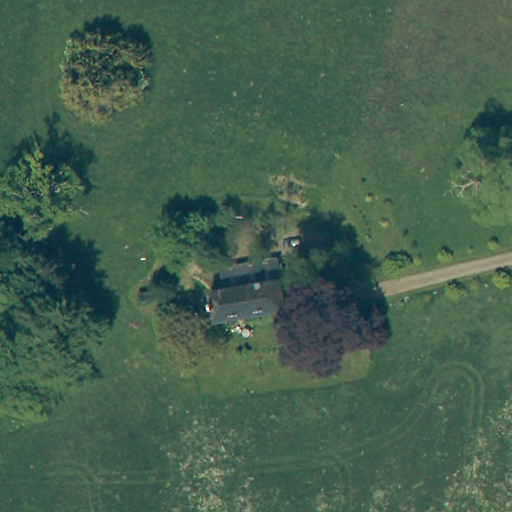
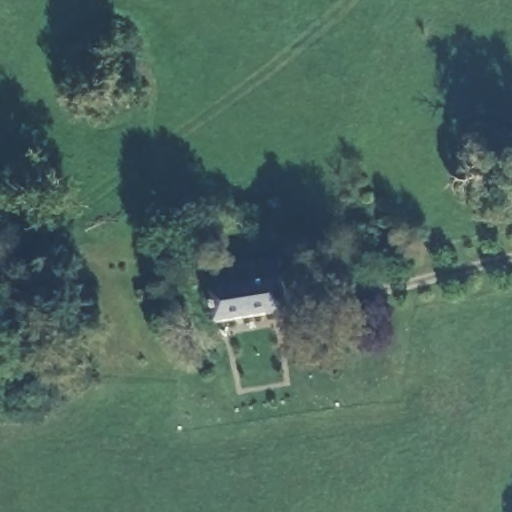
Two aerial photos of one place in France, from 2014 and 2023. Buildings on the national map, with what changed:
unchanged [(292,311),(217,322),(214,289),(287,278),(292,311)]

